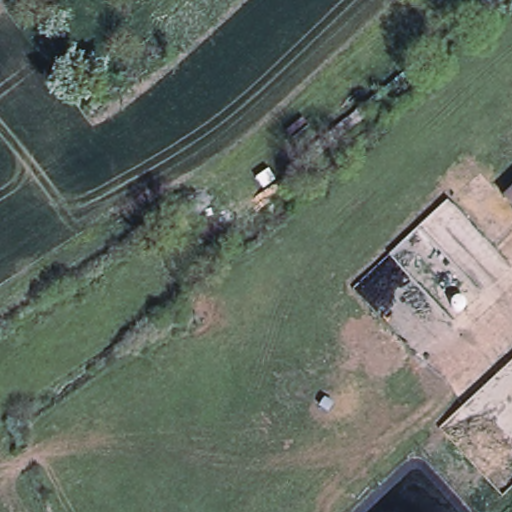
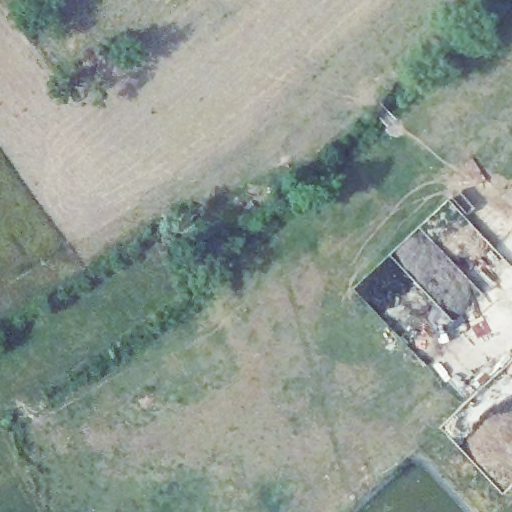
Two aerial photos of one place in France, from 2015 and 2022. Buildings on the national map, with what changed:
unchanged [(508,198),(512,195),(512,202),(508,198)]

